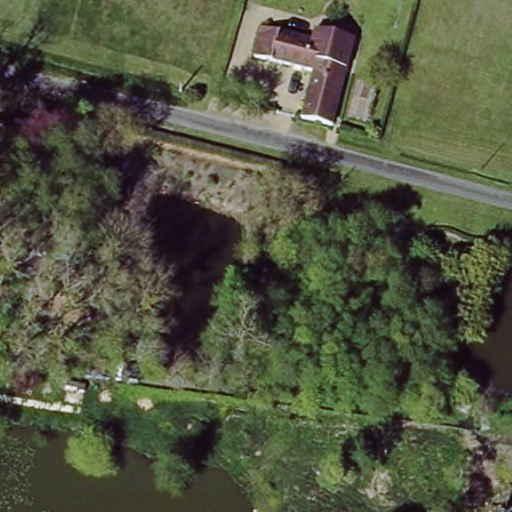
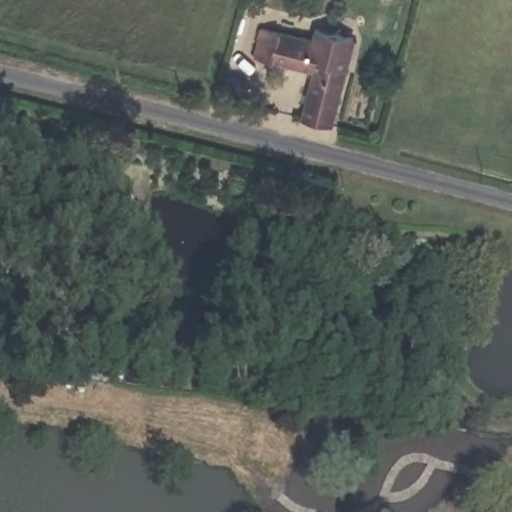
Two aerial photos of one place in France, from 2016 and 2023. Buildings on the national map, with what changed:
unchanged [(314,41),(305,68),(254,51),(262,25),(314,41)]
unchanged [(316,30),(356,40),(332,126),(299,116),(313,70),(305,68),(314,41),(316,30)]

